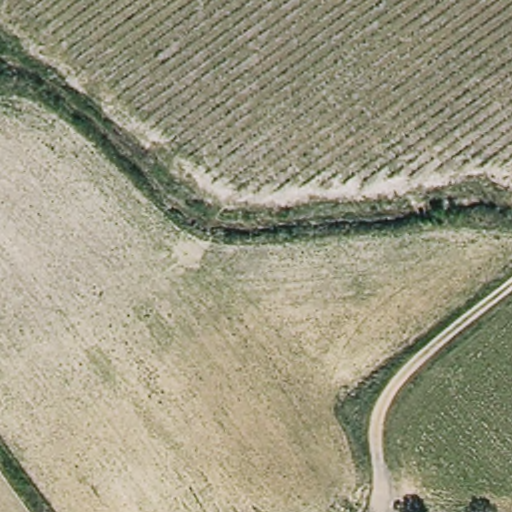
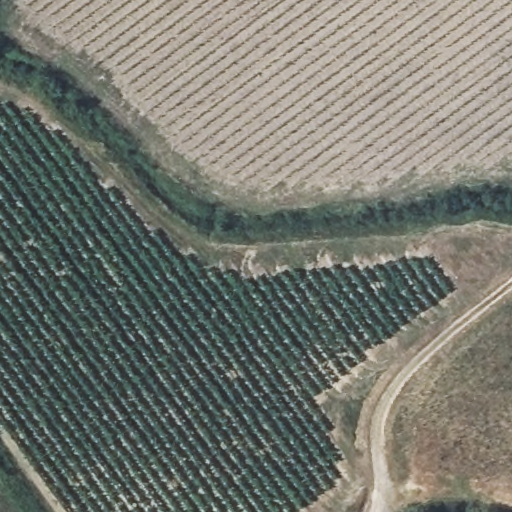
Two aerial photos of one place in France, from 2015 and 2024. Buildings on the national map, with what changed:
[]

